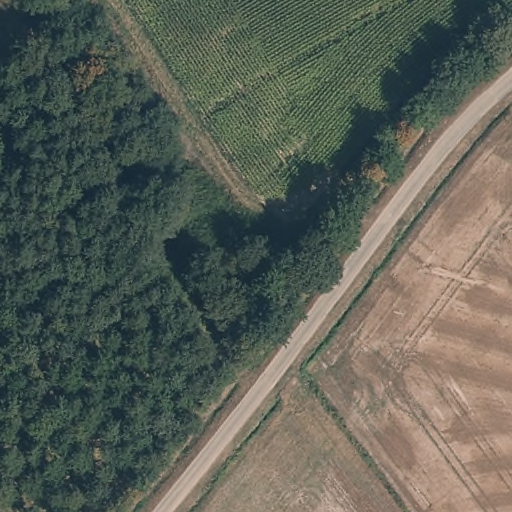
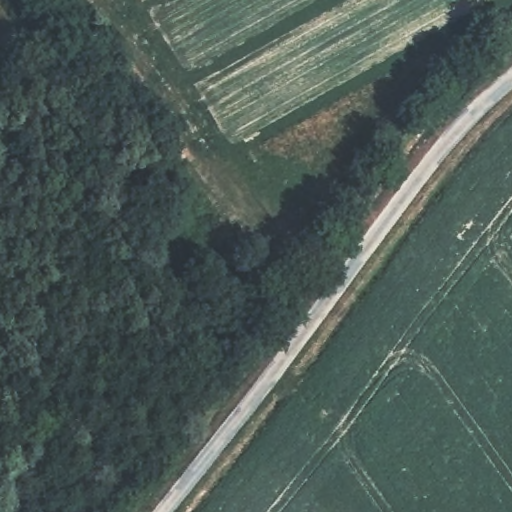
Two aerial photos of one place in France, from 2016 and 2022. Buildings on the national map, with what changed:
[]

